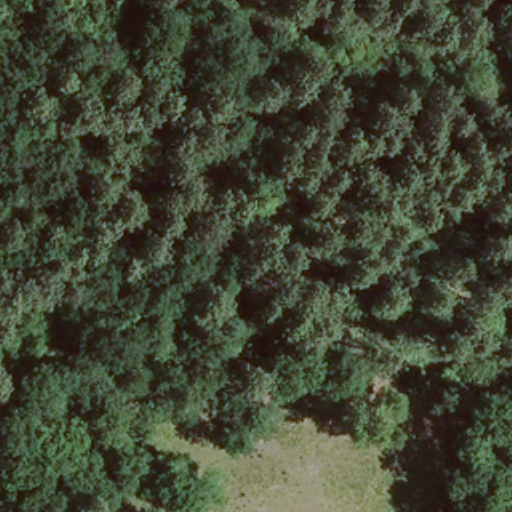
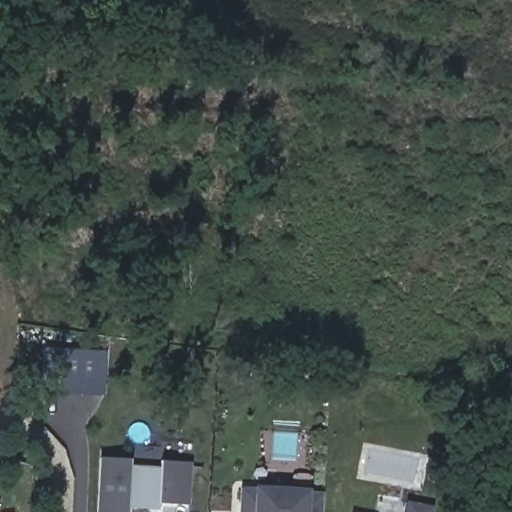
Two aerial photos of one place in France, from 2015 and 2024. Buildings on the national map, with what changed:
new [(107,352),(105,395),(60,392),(61,377),(43,375),(45,348),(107,352)]
new [(1,399),(0,399),(0,395),(1,399)]
new [(131,460),(131,467),(162,468),(162,460),(191,461),(189,504),(161,502),(161,508),(129,508),(129,512),(99,512),(101,457),(131,460)]
new [(328,493),(326,512),(242,512),(243,488),(328,493)]

